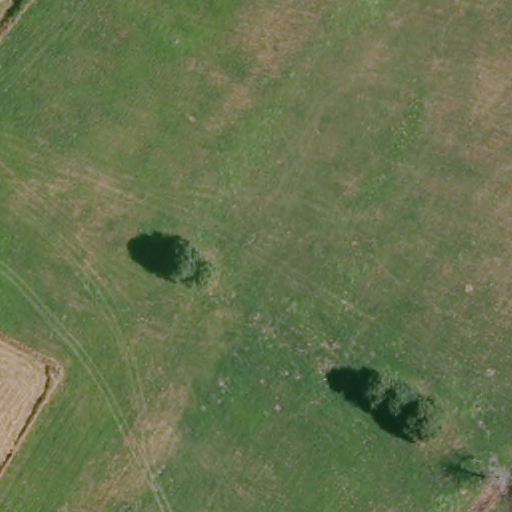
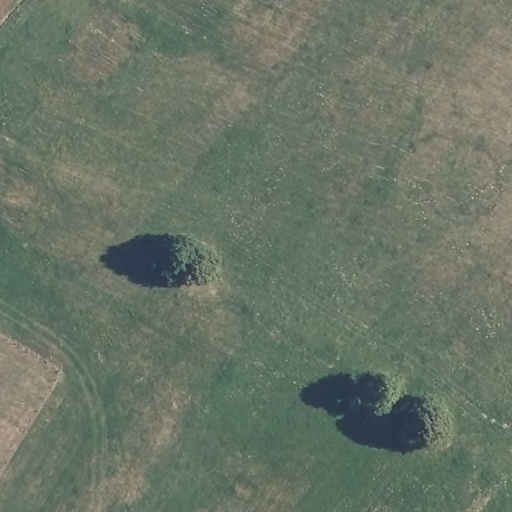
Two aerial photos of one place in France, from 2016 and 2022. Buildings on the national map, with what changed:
[]

